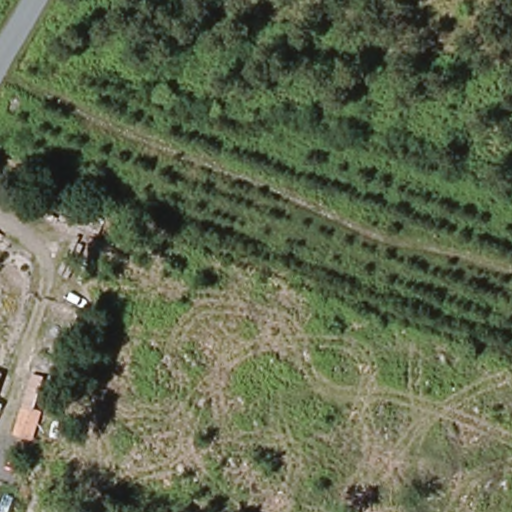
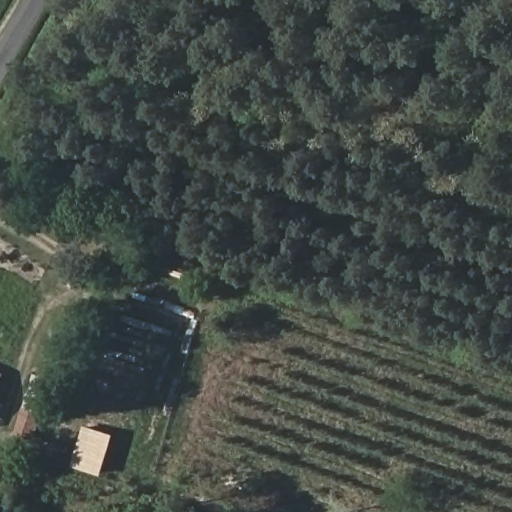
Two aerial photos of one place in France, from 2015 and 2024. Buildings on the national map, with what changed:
unchanged [(43,419),(28,413),(40,382),(32,380),(46,345),(63,352),(43,419)]
unchanged [(0,386),(0,376),(4,379),(0,386)]
new [(101,475),(71,466),(83,425),(114,435),(101,475)]

